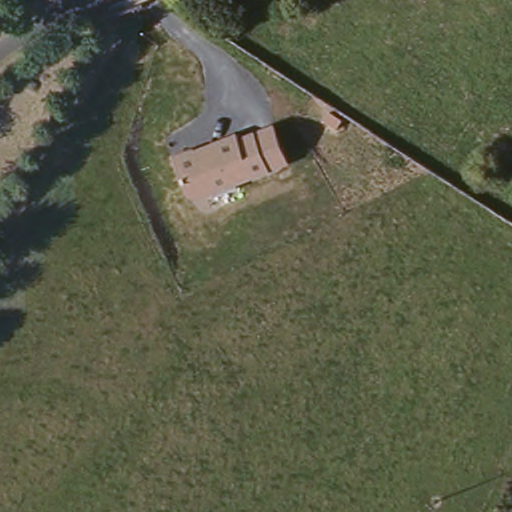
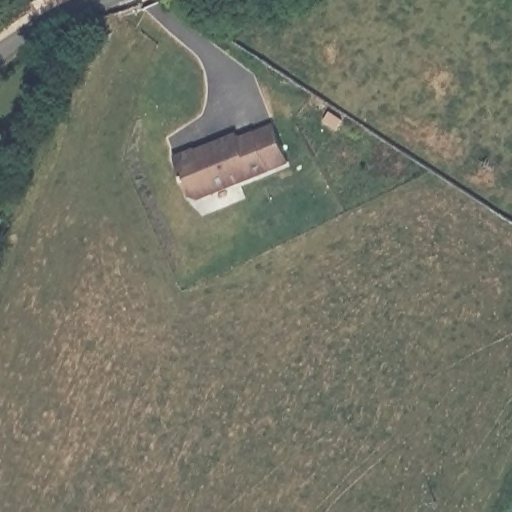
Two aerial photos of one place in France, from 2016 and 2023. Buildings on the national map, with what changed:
unchanged [(236,133),(238,139),(275,125),(288,167),(198,201),(188,195),(171,157),(236,133)]

